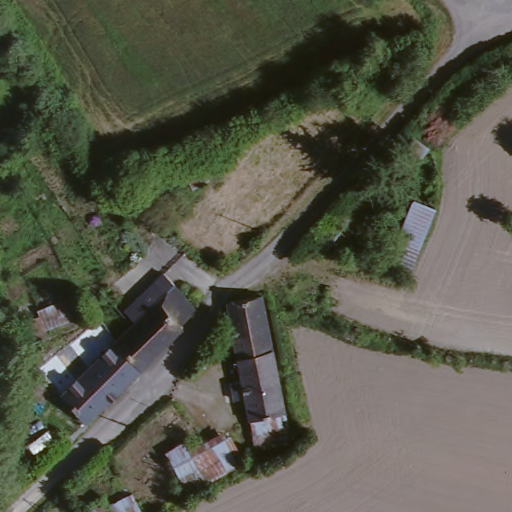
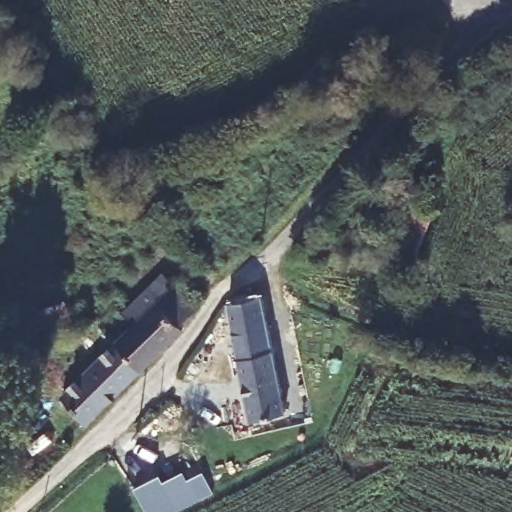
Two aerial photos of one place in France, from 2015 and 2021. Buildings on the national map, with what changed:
unchanged [(411,137),(426,148),(405,177),(389,165),(411,137)]
unchanged [(196,155),(208,181),(189,190),(178,164),(196,155)]
unchanged [(413,205),(433,214),(412,269),(392,261),(413,205)]
unchanged [(134,324),(124,313),(163,274),(195,310),(179,326),(182,329),(140,370),(116,343),(115,342),(134,324)]
unchanged [(230,308),(264,301),(288,421),(252,427),(247,404),(236,406),(233,388),(244,387),(230,308)]
unchanged [(116,343),(140,370),(84,423),(59,396),(52,388),(72,367),(81,376),(115,342),(116,343)]
new [(181,472),(185,480),(201,472),(211,493),(195,501),(173,512),(145,512),(133,488),(158,476),(161,482),(181,472)]

